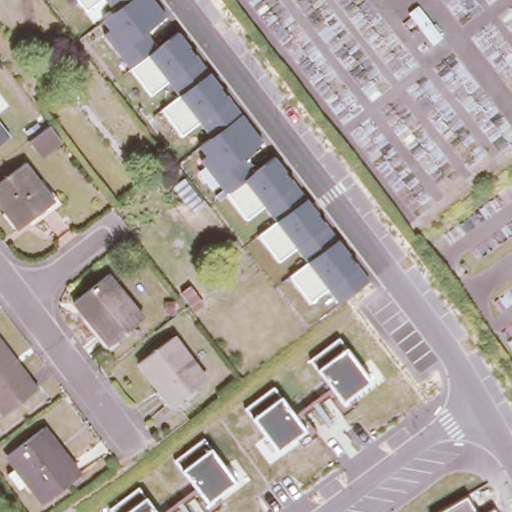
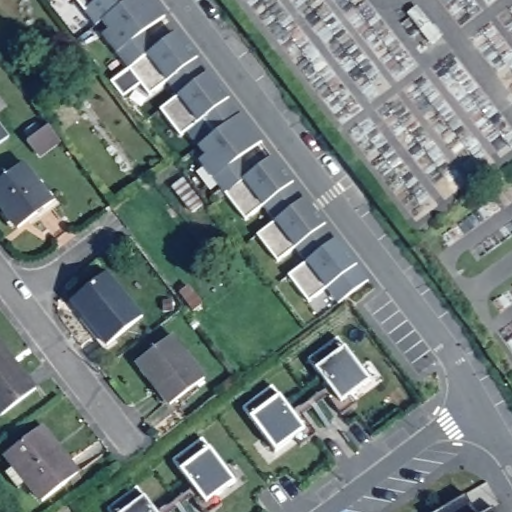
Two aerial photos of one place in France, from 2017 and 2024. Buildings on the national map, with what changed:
unchanged [(78,0),(99,0),(86,10),(78,0)]
unchanged [(130,69),(103,35),(108,30),(101,20),(112,11),(127,0),(155,0),(166,16),(148,31),(159,45),(146,55),(130,69)]
unchanged [(104,0),(127,0),(112,11),(104,0)]
unchanged [(178,95),(166,80),(150,92),(130,69),(146,55),(159,45),(177,31),(210,72),(178,95)]
unchanged [(210,137),(198,122),(181,134),(161,109),(178,95),(210,72),(230,99),(242,115),(210,137)]
unchanged [(243,180),(226,194),(216,181),(198,161),(205,155),(200,146),(210,137),(242,115),(262,141),(242,157),(255,172),(243,180)]
unchanged [(0,137),(0,126),(5,133),(0,137)]
unchanged [(263,206),(246,219),(226,194),(243,180),(255,172),(274,156),(294,182),(306,198),(275,221),(263,206)]
unchanged [(17,229),(0,206),(0,178),(21,161),(52,202),(17,229)]
unchanged [(206,206),(195,214),(177,189),(187,182),(206,206)]
unchanged [(294,247),(278,260),(256,235),(275,221),(306,198),(326,224),(336,239),(306,263),(294,247)]
unchanged [(306,263),(336,239),(358,263),(370,279),(338,304),(326,288),(310,300),(290,275),(306,263)]
unchanged [(107,340),(75,296),(110,269),(143,313),(107,340)]
unchanged [(182,291),(190,285),(205,303),(196,310),(182,291)]
unchanged [(170,404),(137,359),(172,333),(205,377),(170,404)]
unchanged [(0,413),(0,337),(37,386),(0,413)]
unchanged [(317,368),(310,360),(338,338),(345,348),(371,381),(342,403),(317,368)]
unchanged [(251,417),(242,408),(273,387),(280,396),(305,430),(275,451),(251,417)]
unchanged [(42,497),(27,476),(18,482),(6,466),(15,460),(6,448),(44,420),(80,470),(42,497)]
unchanged [(181,468),(175,460),(203,439),(210,448),(236,481),(207,503),(181,468)]
unchanged [(108,508),(138,488),(145,496),(157,512),(112,512),(108,508)]
unchanged [(475,512),(439,512),(466,495),(475,512)]
unchanged [(493,510),(495,512),(489,512),(493,510)]

